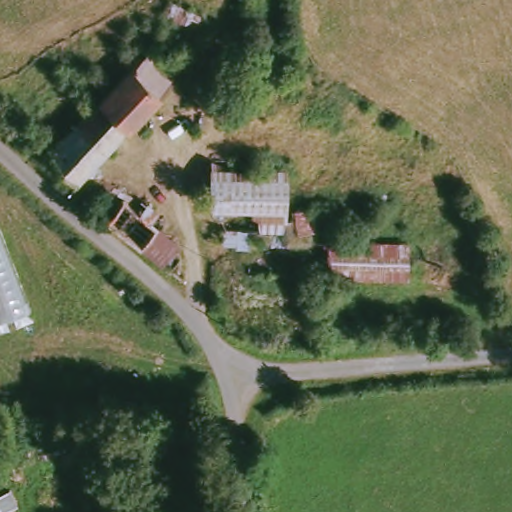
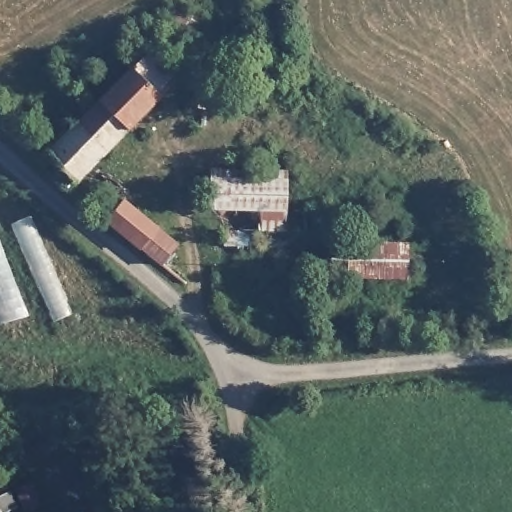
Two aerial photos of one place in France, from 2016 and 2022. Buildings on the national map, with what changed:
unchanged [(76,174),(49,146),(90,105),(74,88),(116,48),(122,54),(135,43),(143,51),(152,43),(180,71),(76,174)]
unchanged [(206,108),(192,104),(196,88),(202,76),(212,84),(206,108)]
unchanged [(286,156),(286,203),(326,204),(326,225),(372,226),(373,236),(405,237),(404,270),(246,268),(246,243),(234,242),(234,238),(222,238),(221,223),(208,223),(210,155),(286,156)]
unchanged [(122,193),(133,202),(141,192),(155,204),(146,214),(175,237),(168,245),(177,254),(166,266),(131,237),(103,214),(122,193)]
unchanged [(26,313),(0,324),(0,245),(26,313)]
unchanged [(13,512),(0,512),(0,487),(13,512)]

